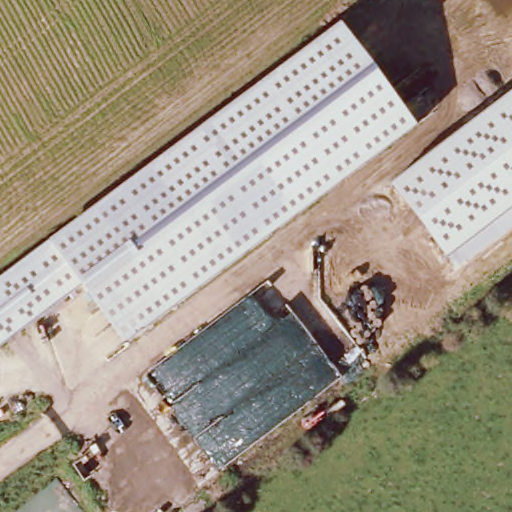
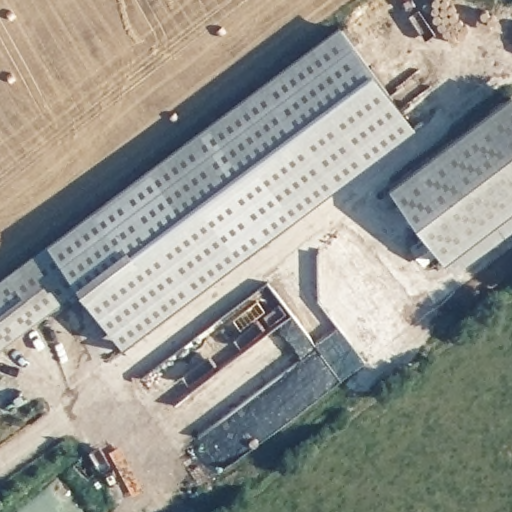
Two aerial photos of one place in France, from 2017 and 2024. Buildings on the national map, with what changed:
unchanged [(340,21),(417,126),(122,345),(80,286),(48,240),(340,21)]
unchanged [(512,90),(512,206),(445,257),(390,185),(512,90)]
unchanged [(0,277),(48,240),(80,286),(0,346),(0,277)]

